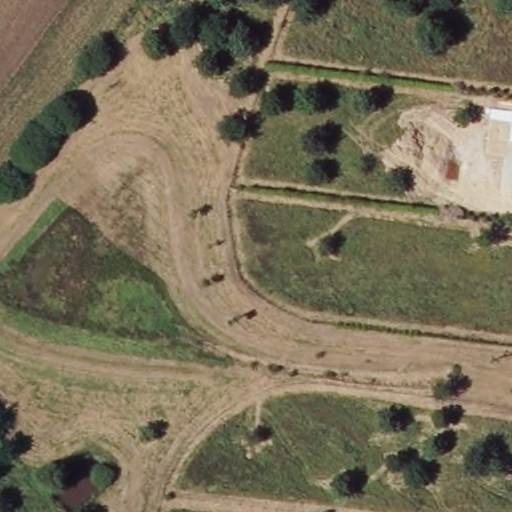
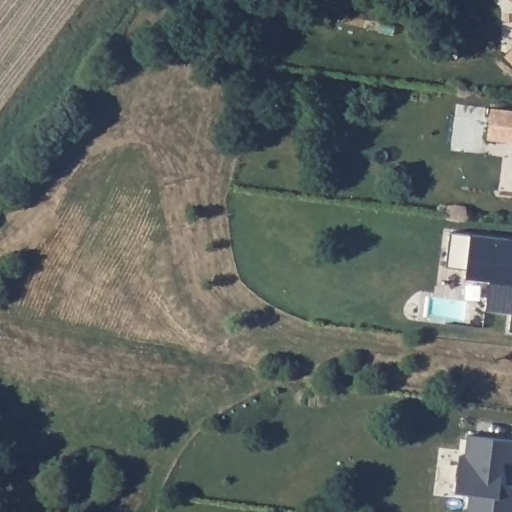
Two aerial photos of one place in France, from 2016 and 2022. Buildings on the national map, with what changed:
new [(512,50),(512,61),(506,55),(512,50)]
new [(512,141),(509,140),(486,137),(489,118),(490,107),(512,110),(512,141)]
new [(490,279),(465,277),(466,268),(447,266),(451,231),(512,237),(512,311),(486,308),(490,279)]
new [(512,311),(512,330),(510,329),(512,311)]
new [(501,484),(512,485),(512,512),(468,512),(470,493),(456,492),(461,447),(465,448),(468,434),(512,440),(512,462),(504,461),(501,484)]

